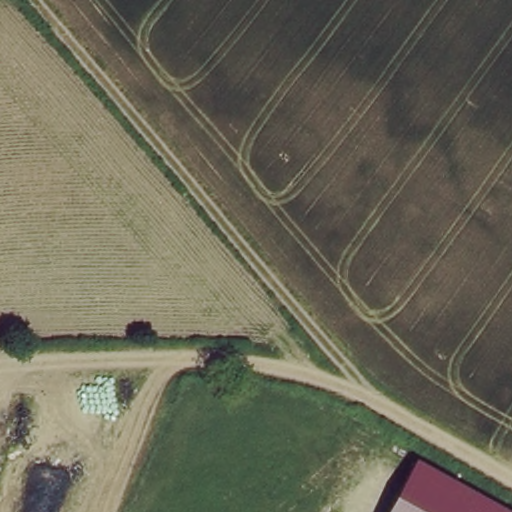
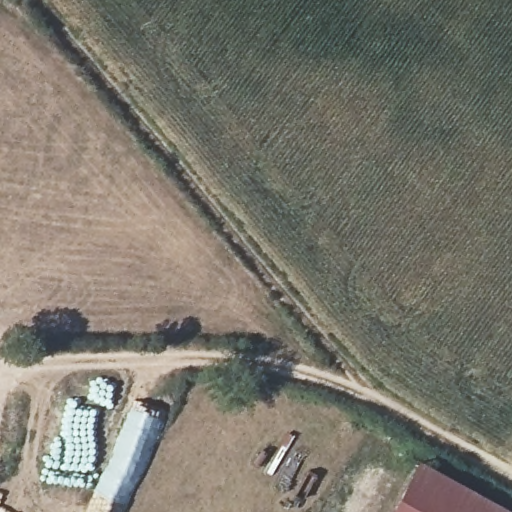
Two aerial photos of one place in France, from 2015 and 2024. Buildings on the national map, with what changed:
unchanged [(388,512),(416,461),(511,512),(388,512)]

